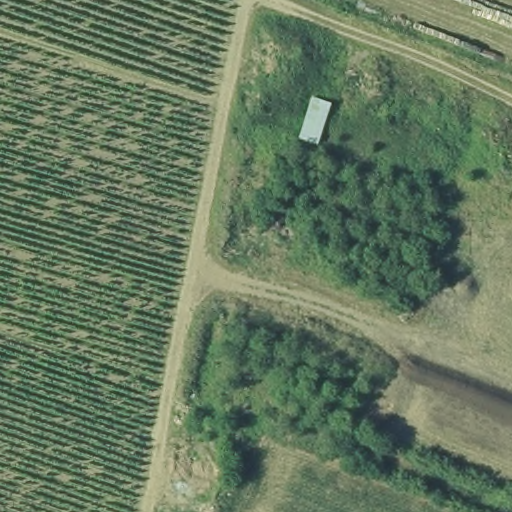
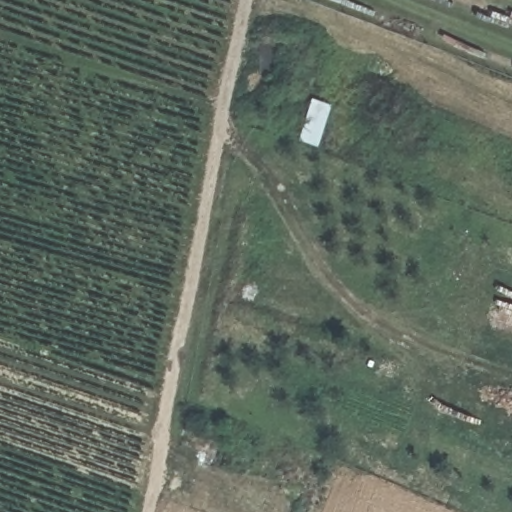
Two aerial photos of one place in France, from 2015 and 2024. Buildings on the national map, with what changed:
unchanged [(319,150),(296,142),(311,99),(335,108),(319,150)]

